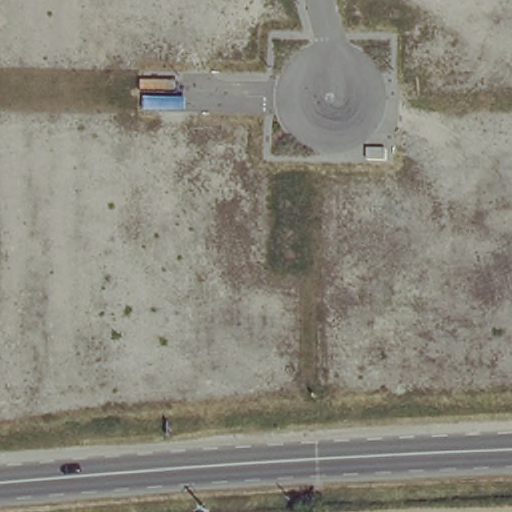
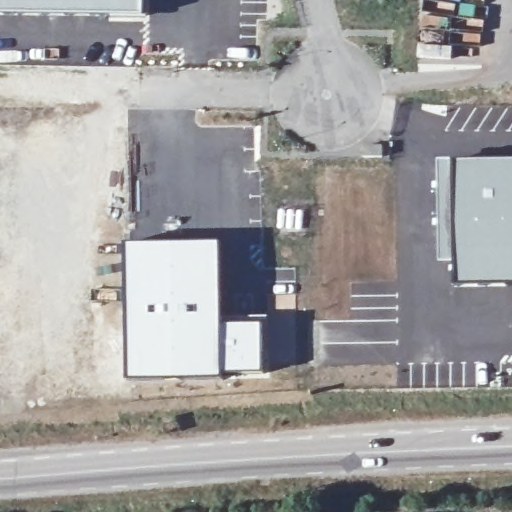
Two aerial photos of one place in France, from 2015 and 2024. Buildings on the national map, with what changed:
new [(0,16),(0,0),(145,0),(145,17),(0,16)]
unchanged [(362,156),(362,145),(380,145),(380,156),(362,156)]
new [(439,159),(512,158),(512,286),(458,288),(457,264),(438,263),(439,159)]
new [(221,242),(222,323),(222,377),(185,380),(129,380),(126,243),(221,242)]
new [(222,323),(262,322),(263,373),(222,377),(222,323)]

